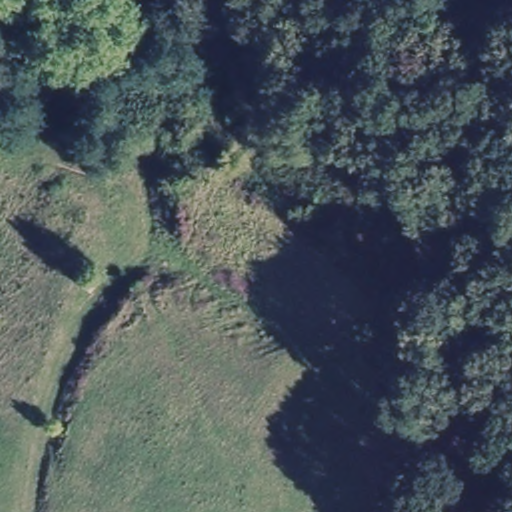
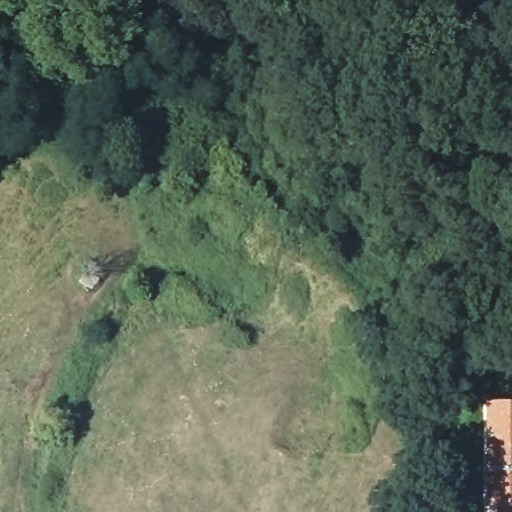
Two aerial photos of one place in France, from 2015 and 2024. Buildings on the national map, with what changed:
new [(512,400),(512,512),(485,512),(483,482),(484,400),(512,400)]

